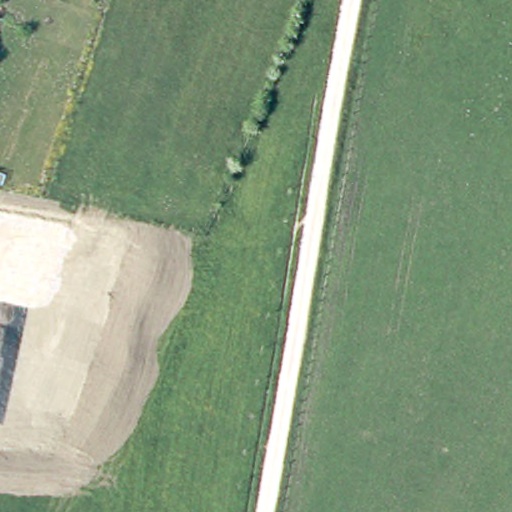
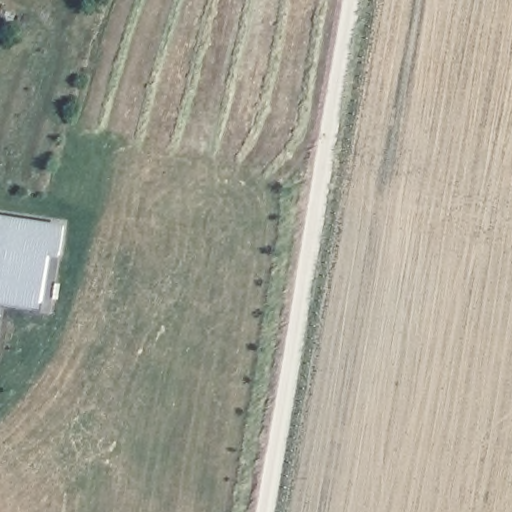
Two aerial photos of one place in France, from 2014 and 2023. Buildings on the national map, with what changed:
new [(0,214),(65,224),(60,255),(52,254),(43,305),(0,299),(0,214)]

